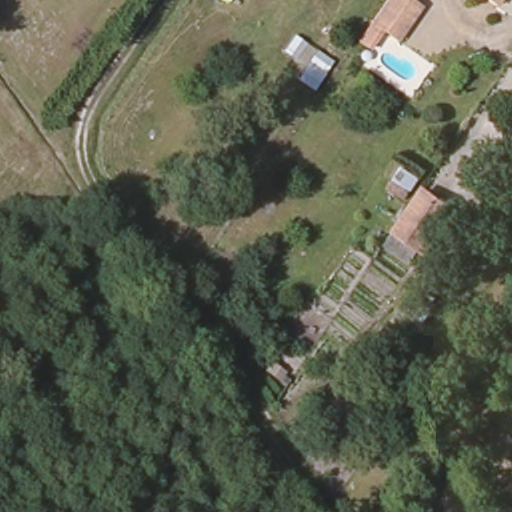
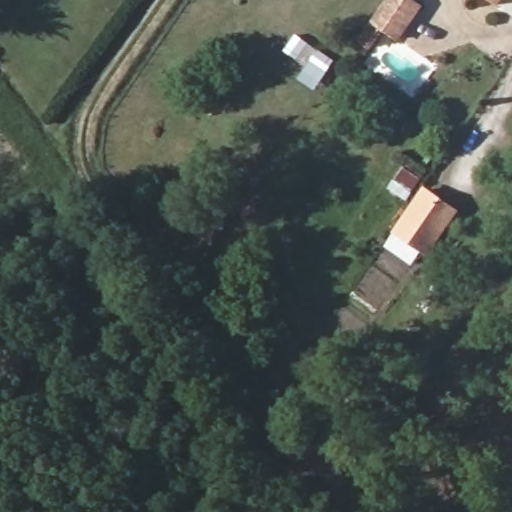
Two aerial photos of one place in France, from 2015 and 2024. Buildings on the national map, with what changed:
unchanged [(363,27),(370,17),(383,0),(410,0),(414,2),(391,32),(379,24),(372,34),(363,27)]
unchanged [(503,9),(490,0),(510,0),(503,9)]
unchanged [(419,196),(452,217),(422,260),(391,235),(419,196)]

